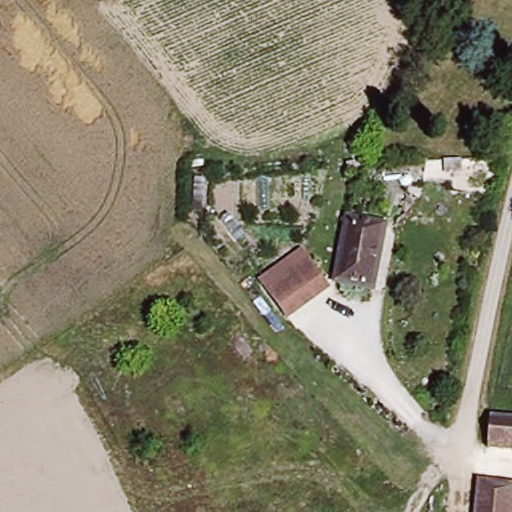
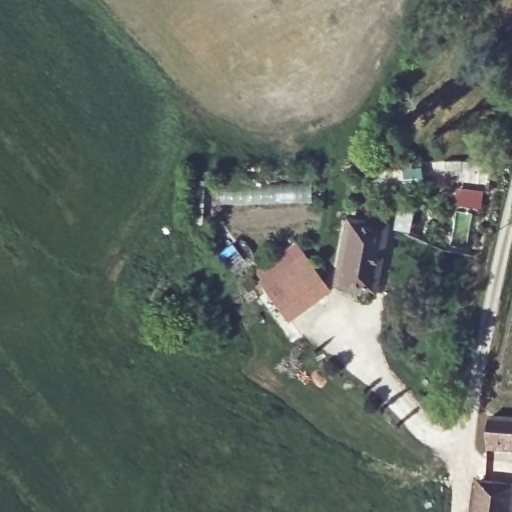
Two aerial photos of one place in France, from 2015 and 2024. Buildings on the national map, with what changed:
unchanged [(376,288),(339,281),(352,219),(389,226),(376,288)]
unchanged [(268,289),(306,262),(326,291),(287,317),(268,289)]
unchanged [(512,418),(512,450),(488,448),(490,416),(512,418)]
unchanged [(512,484),(512,512),(479,512),(483,480),(512,484)]

